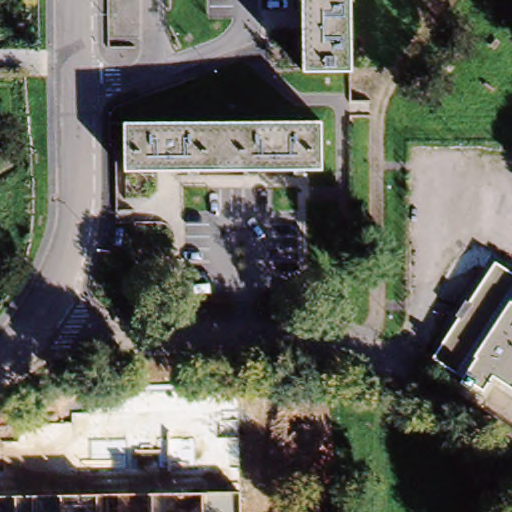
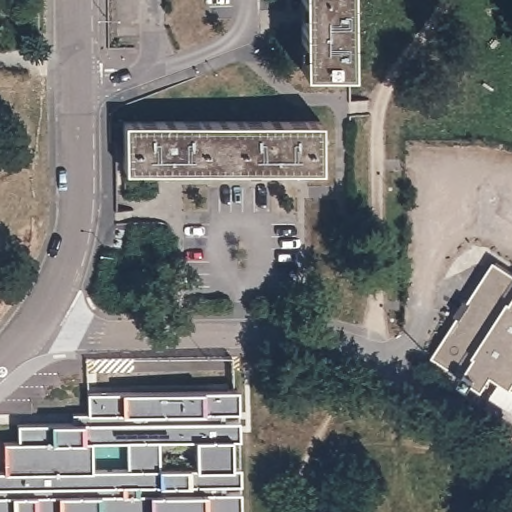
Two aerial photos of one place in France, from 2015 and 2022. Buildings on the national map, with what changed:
unchanged [(301,0),(348,0),(350,71),(302,72),(301,0)]
unchanged [(125,173),(124,125),(320,121),(320,170),(125,173)]
unchanged [(512,404),(476,380),(473,385),(461,378),(465,372),(439,356),(435,353),(460,313),(456,310),(466,295),(470,298),(496,258),(512,269),(512,404)]
new [(237,388),(240,481),(223,482),(222,490),(240,490),(241,512),(0,512),(0,470),(4,470),(3,440),(19,440),(18,423),(51,421),(73,421),(72,412),(87,412),(87,391),(122,391),(203,389),(237,388)]

